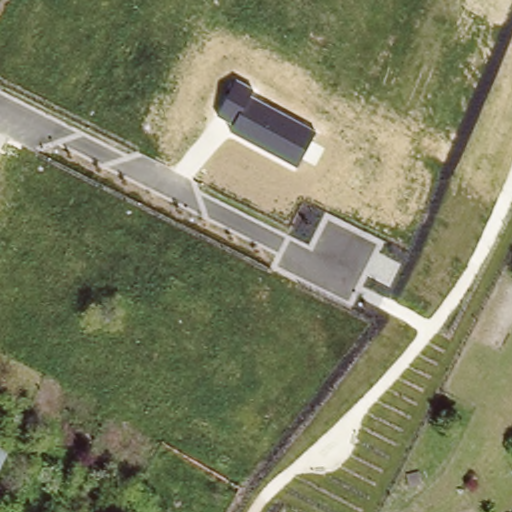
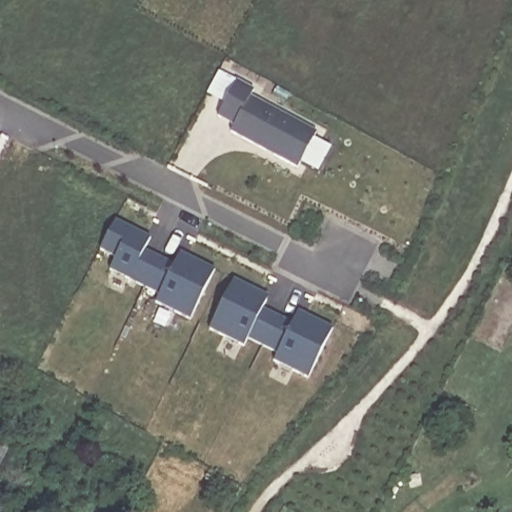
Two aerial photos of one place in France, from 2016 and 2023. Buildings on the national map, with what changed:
unchanged [(230,130),(234,123),(217,114),(235,81),(253,90),(251,97),(317,132),(297,166),(230,130)]
new [(155,301),(158,293),(110,270),(115,256),(99,249),(115,219),(150,238),(144,251),(173,265),(179,253),(215,269),(190,319),(155,301)]
new [(274,361),(278,353),(248,338),(244,346),(210,329),(233,279),(269,296),(264,308),(293,322),(297,312),(331,327),(309,377),(274,361)]
unchanged [(4,454),(0,461),(0,452),(4,454)]

